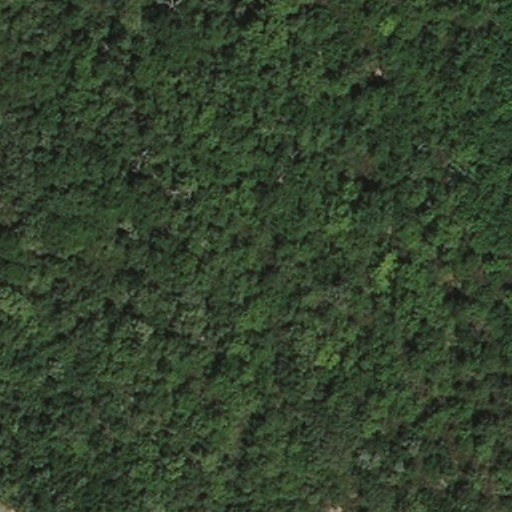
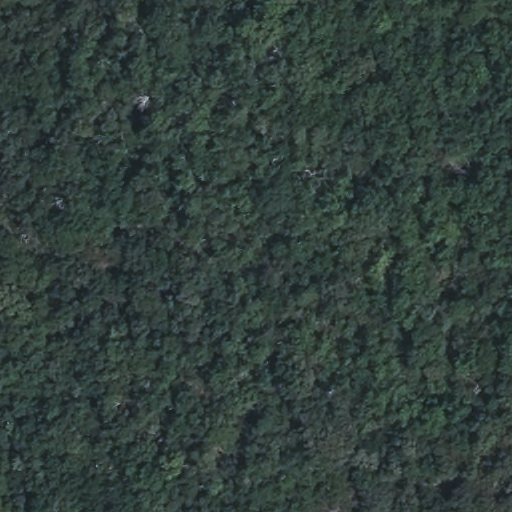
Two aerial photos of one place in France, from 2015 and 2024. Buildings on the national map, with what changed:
[]

